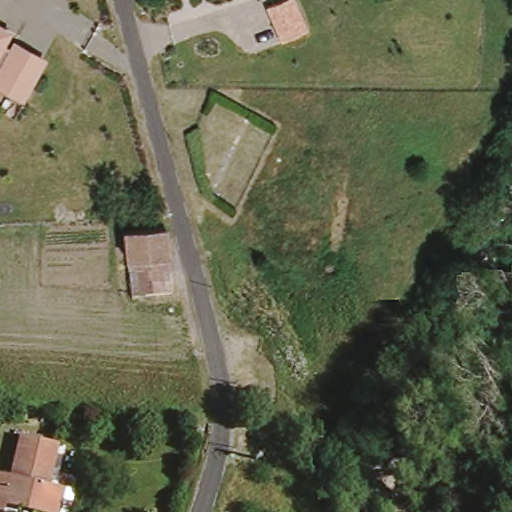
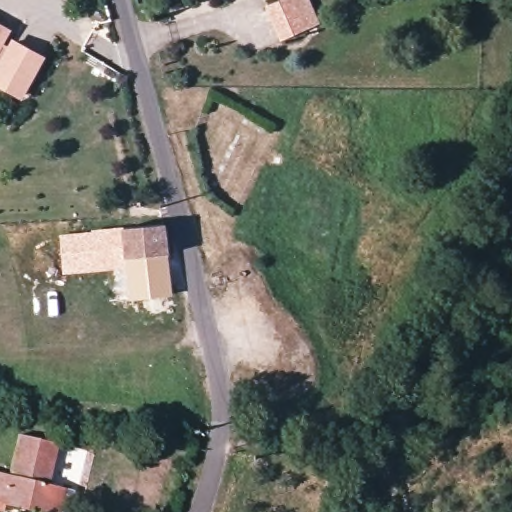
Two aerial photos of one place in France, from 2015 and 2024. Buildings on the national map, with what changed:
unchanged [(281,0),(295,0),(307,29),(280,41),(267,7),(281,0)]
unchanged [(14,28),(10,39),(46,56),(24,101),(0,89),(0,21),(14,28)]
unchanged [(125,260),(123,229),(167,226),(171,257),(128,259),(125,260)]
new [(64,274),(60,235),(91,232),(91,230),(123,227),(123,229),(125,260),(128,259),(129,268),(64,274)]
unchanged [(175,294),(131,297),(130,284),(128,259),(171,257),(172,265),(173,273),(174,282),(175,294)]
unchanged [(53,512),(25,512),(0,505),(0,468),(6,470),(22,429),(55,439),(42,482),(54,485),(61,487),(53,512)]

